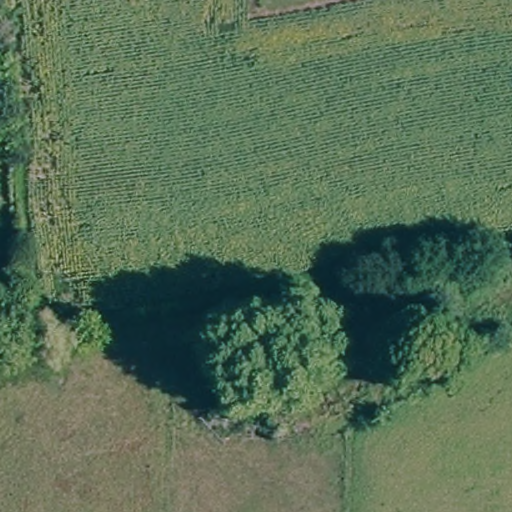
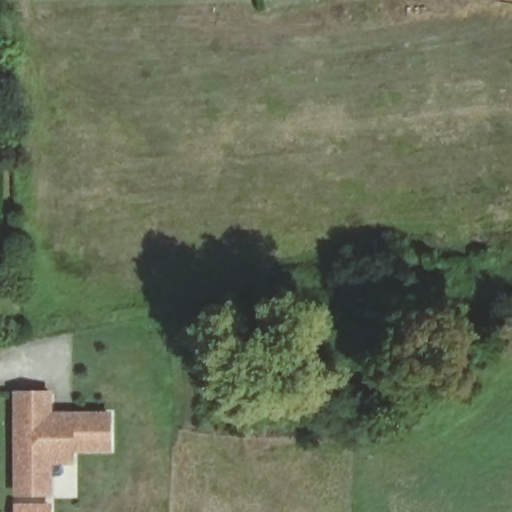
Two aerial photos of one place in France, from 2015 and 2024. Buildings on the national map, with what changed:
new [(37,502),(10,501),(13,401),(47,402),(46,424),(68,424),(106,425),(105,460),(68,459),(67,471),(45,470),(43,503),(37,502)]

